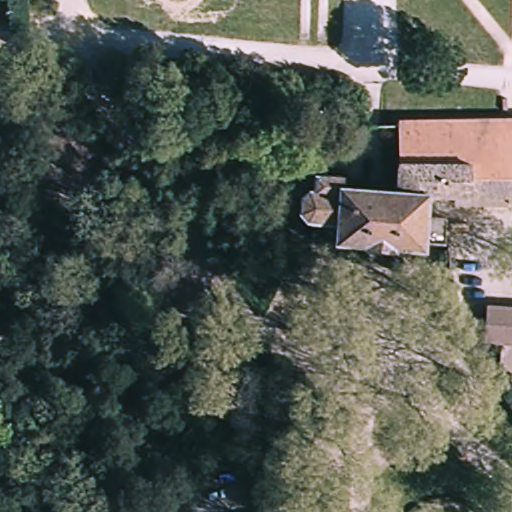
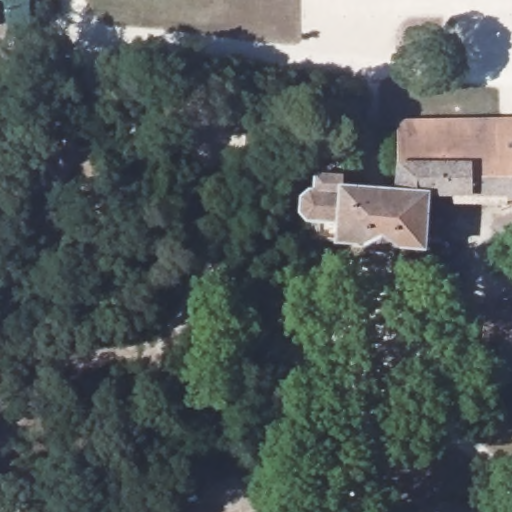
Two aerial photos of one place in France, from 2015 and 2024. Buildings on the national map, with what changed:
unchanged [(27,22),(13,20),(11,0),(27,0),(27,22)]
unchanged [(431,245),(427,246),(425,248),(425,252),(313,245),(313,227),(301,224),(298,218),(298,202),(301,200),(304,197),(304,192),(309,192),(309,177),(321,177),(323,167),(356,168),(357,189),(390,191),(392,124),(512,125),(512,204),(504,203),(502,211),(449,211),(446,203),(419,202),(419,219),(433,221),(433,246),(431,245)]
unchanged [(487,307),(512,310),(512,348),(503,347),(481,345),(487,307)]
unchanged [(498,373),(503,347),(512,348),(512,374),(498,373)]

